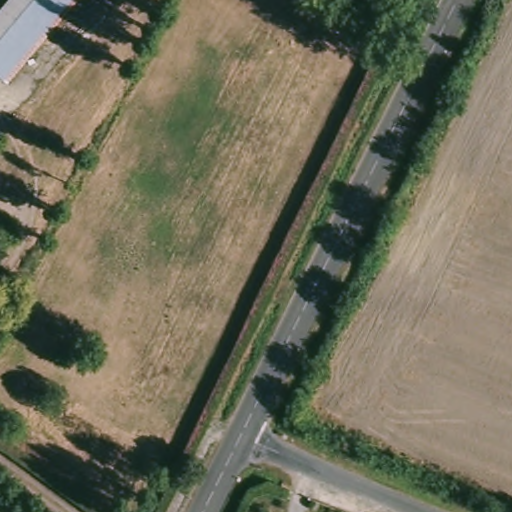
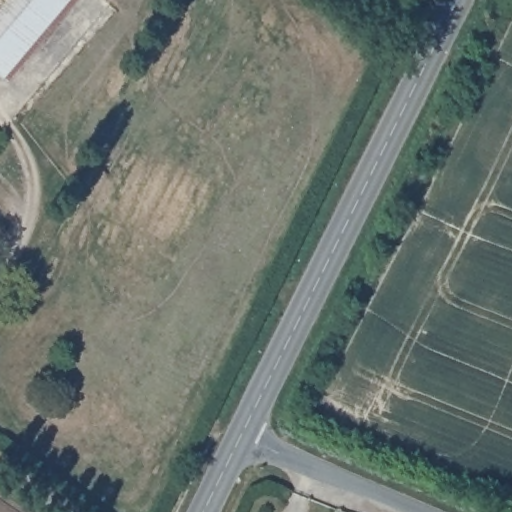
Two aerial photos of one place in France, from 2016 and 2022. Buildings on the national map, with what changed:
unchanged [(37,0),(0,44),(0,7),(6,0),(37,0)]
unchanged [(0,77),(0,44),(37,0),(73,0),(6,82),(0,77)]

